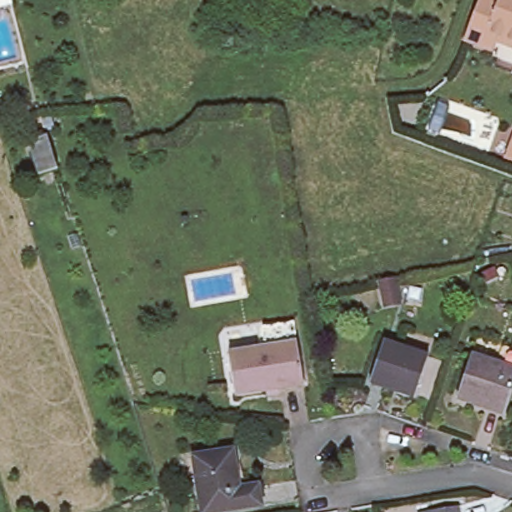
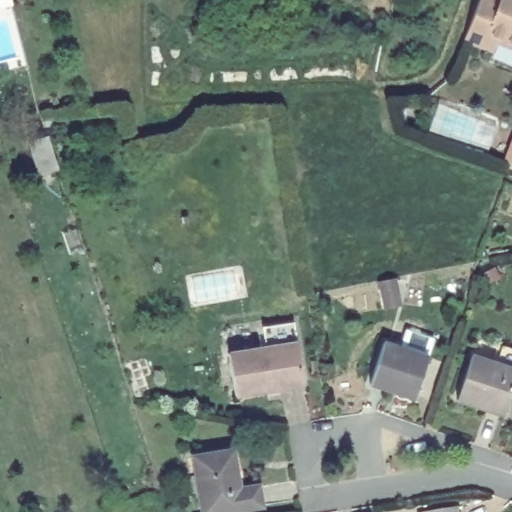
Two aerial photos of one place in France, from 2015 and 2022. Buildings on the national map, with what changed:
unchanged [(460,43),(476,0),(512,0),(512,52),(491,44),(487,54),(460,43)]
unchanged [(495,127),(486,151),(427,133),(437,104),(495,127)]
unchanged [(44,184),(33,151),(50,145),(62,179),(44,184)]
unchanged [(507,161),(512,149),(512,163),(507,161)]
unchanged [(402,303),(387,306),(382,281),(397,278),(402,303)]
unchanged [(277,386),(277,390),(232,398),(224,356),(261,349),(257,329),(289,323),(293,344),(300,382),(277,386)]
unchanged [(415,404),(398,399),(400,394),(372,386),(385,344),(430,359),(415,404)]
unchanged [(467,408),(465,412),(448,406),(463,362),(489,371),(495,353),(512,359),(512,372),(510,378),(497,418),(467,408)]
unchanged [(236,491),(255,488),(258,508),(233,512),(200,512),(192,459),(230,453),(236,491)]
unchanged [(462,512),(433,512),(461,508),(462,512)]

